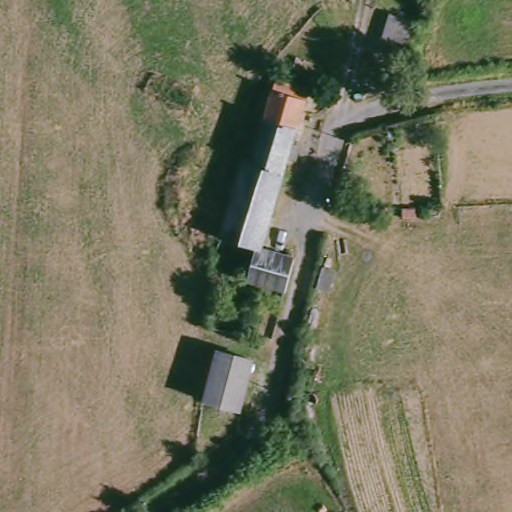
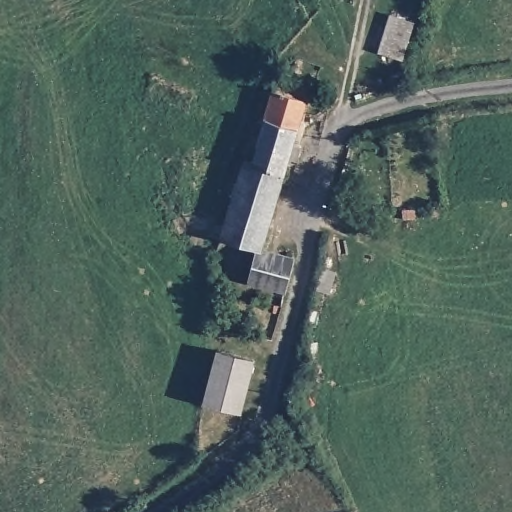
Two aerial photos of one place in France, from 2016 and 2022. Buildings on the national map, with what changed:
unchanged [(415,29),(405,57),(382,49),(395,20),(415,29)]
unchanged [(243,165),(253,166),(273,93),(305,102),(294,140),(302,143),(297,159),(288,159),(262,250),(295,259),(286,295),(248,285),(255,250),(223,241),(243,165)]
unchanged [(205,399),(216,350),(252,358),(241,408),(205,399)]

